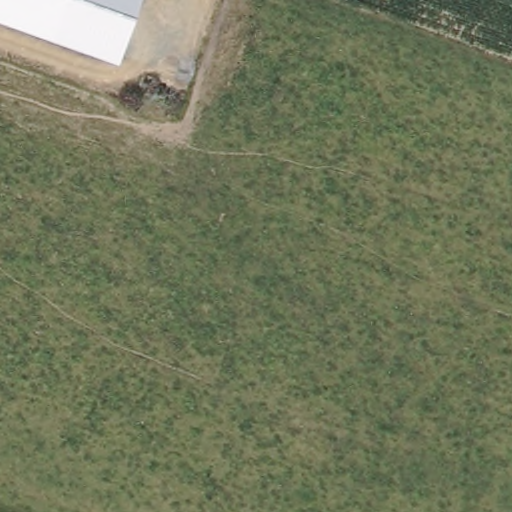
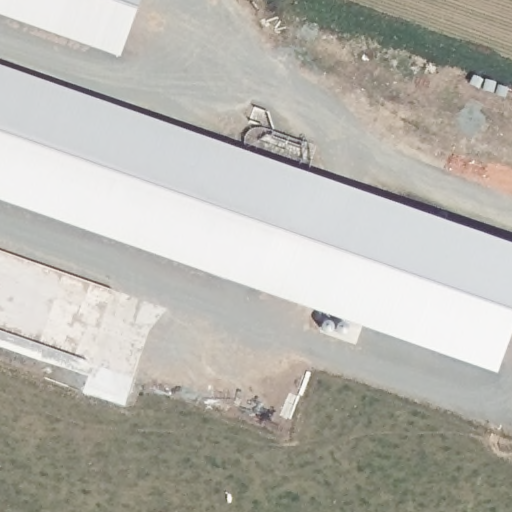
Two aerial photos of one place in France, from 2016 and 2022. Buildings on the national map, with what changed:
unchanged [(0,14),(0,0),(139,0),(118,56),(0,14)]
new [(0,201),(0,66),(512,245),(512,318),(492,373),(0,201)]

